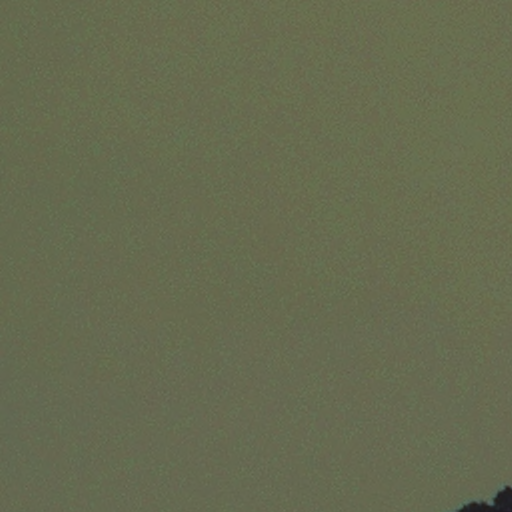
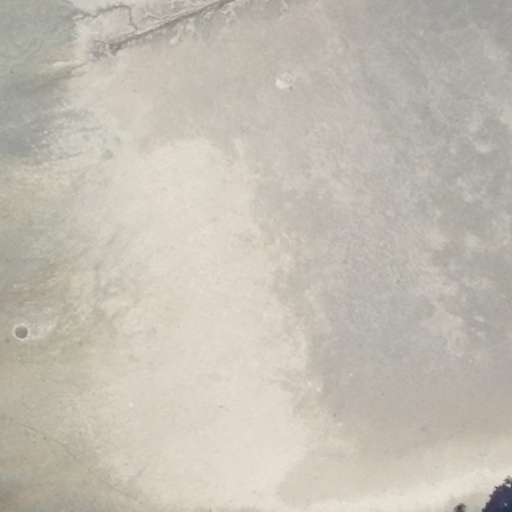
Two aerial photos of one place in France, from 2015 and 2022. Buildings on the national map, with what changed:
[]

